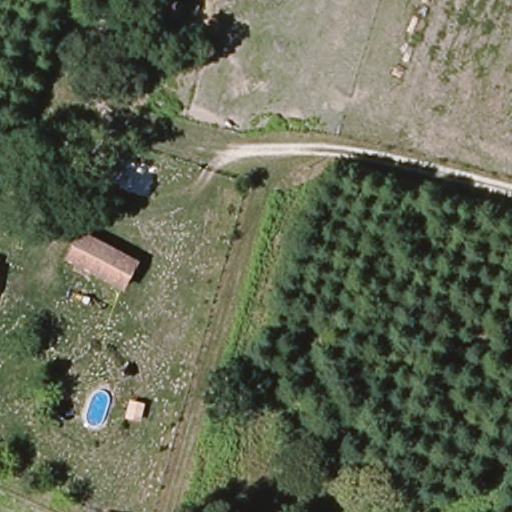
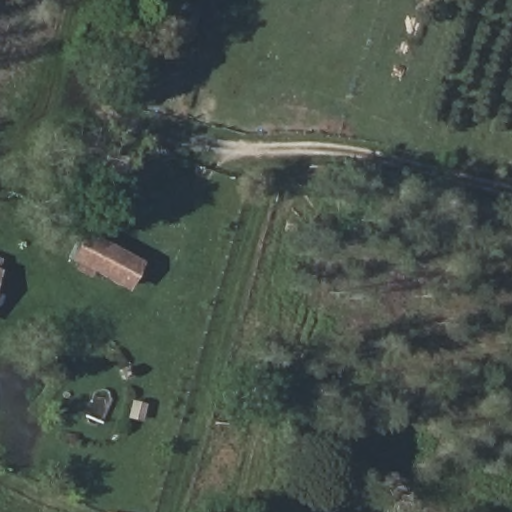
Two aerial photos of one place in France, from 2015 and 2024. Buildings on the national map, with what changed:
unchanged [(128,290),(71,265),(81,239),(139,264),(128,290)]
unchanged [(0,280),(0,271),(4,273),(0,280)]

